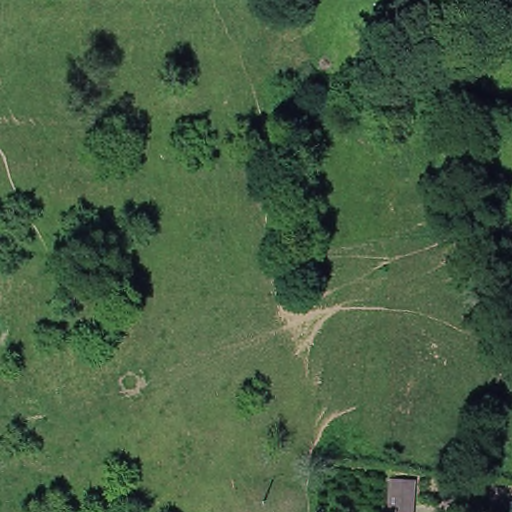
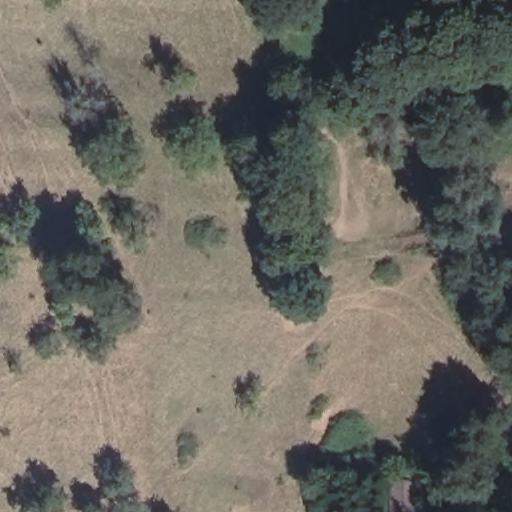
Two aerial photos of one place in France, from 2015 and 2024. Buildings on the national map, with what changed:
unchanged [(422,512),(393,512),(395,478),(419,479),(422,512)]

